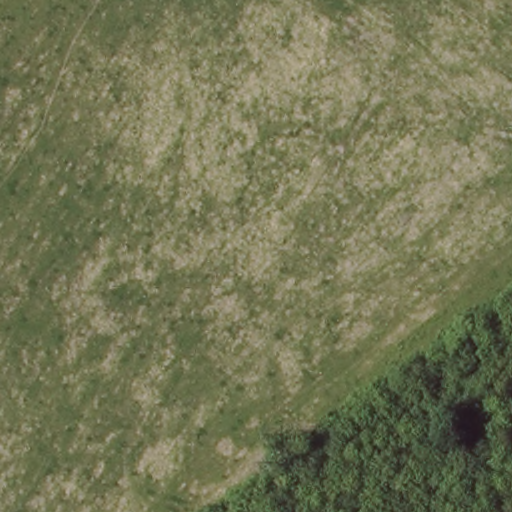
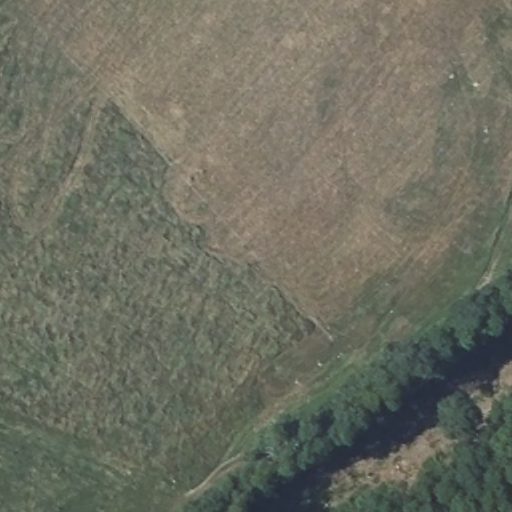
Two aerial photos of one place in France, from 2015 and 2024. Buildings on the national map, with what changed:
[]

